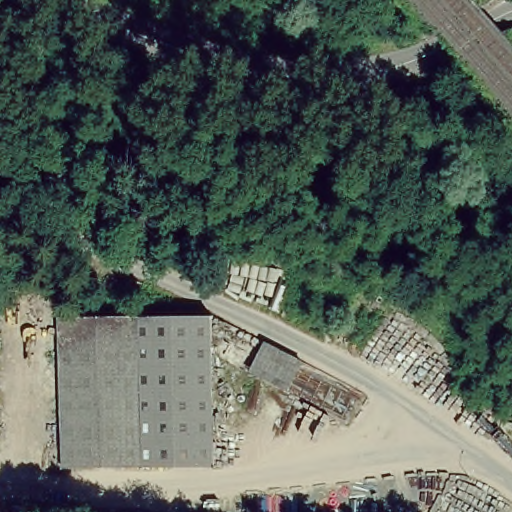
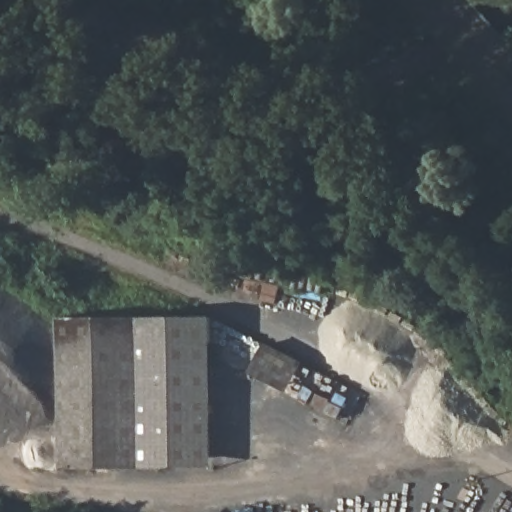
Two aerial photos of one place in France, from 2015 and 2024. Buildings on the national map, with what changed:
unchanged [(62,473),(61,320),(214,317),(213,470),(62,473)]
unchanged [(265,345),(303,365),(288,396),(250,374),(265,345)]

